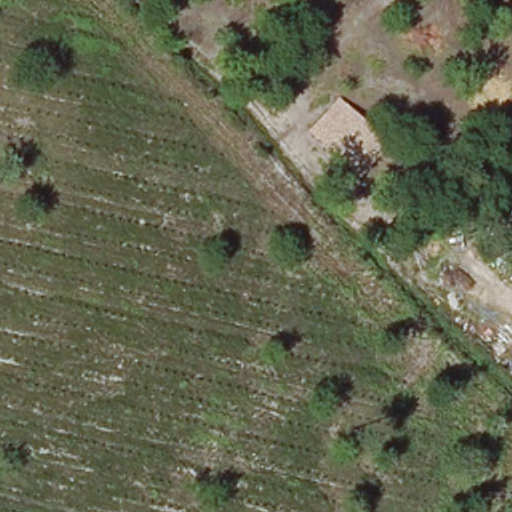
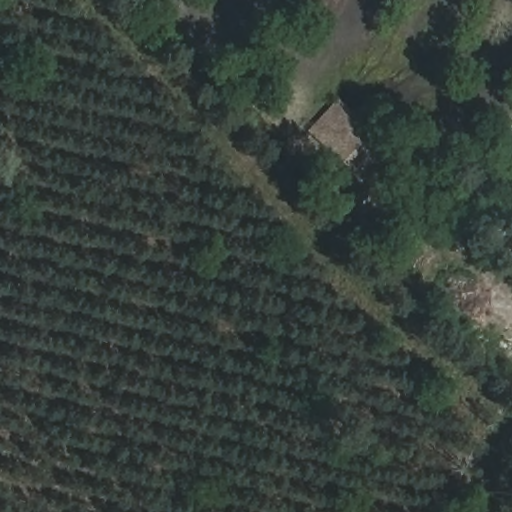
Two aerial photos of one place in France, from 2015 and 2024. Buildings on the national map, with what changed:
unchanged [(359,180),(318,142),(350,106),(391,142),(359,180)]

